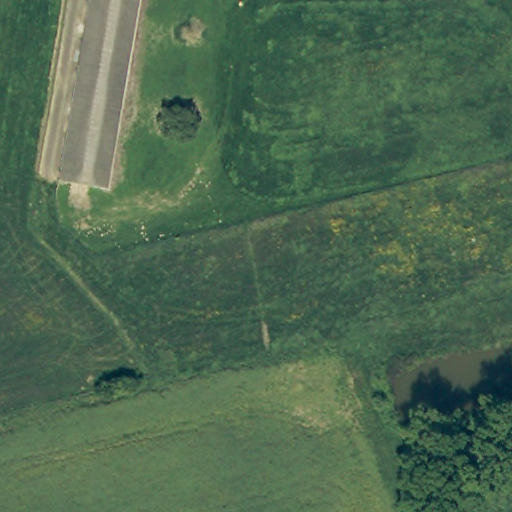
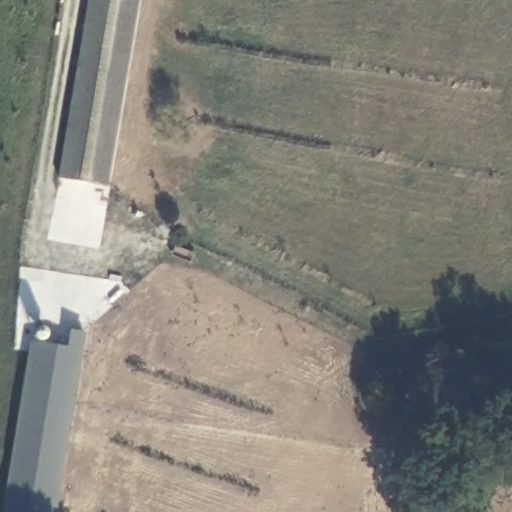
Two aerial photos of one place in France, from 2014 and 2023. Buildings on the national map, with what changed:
unchanged [(61,177),(91,0),(137,0),(107,184),(61,177)]
new [(67,347),(72,330),(87,333),(57,512),(3,512),(31,342),(67,347)]

